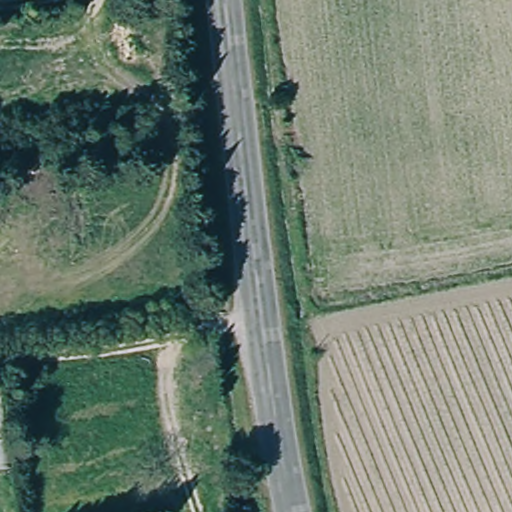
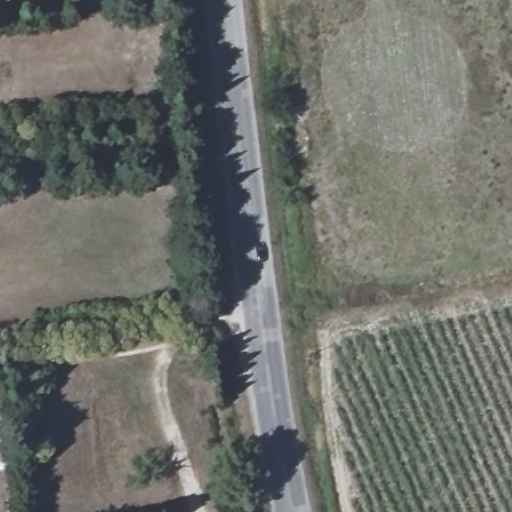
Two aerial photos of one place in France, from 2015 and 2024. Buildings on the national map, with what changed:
unchanged [(0,391),(8,390),(15,471),(0,473),(0,391)]

